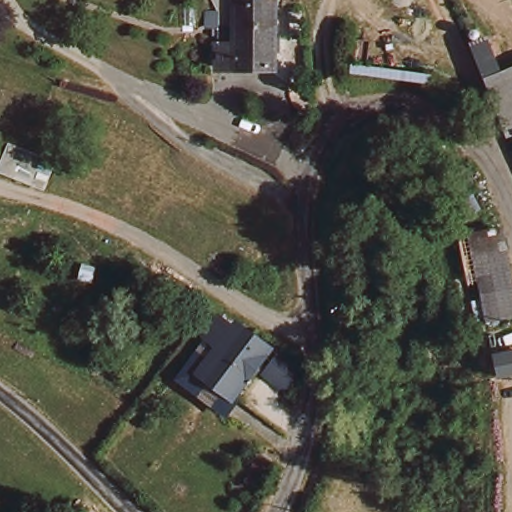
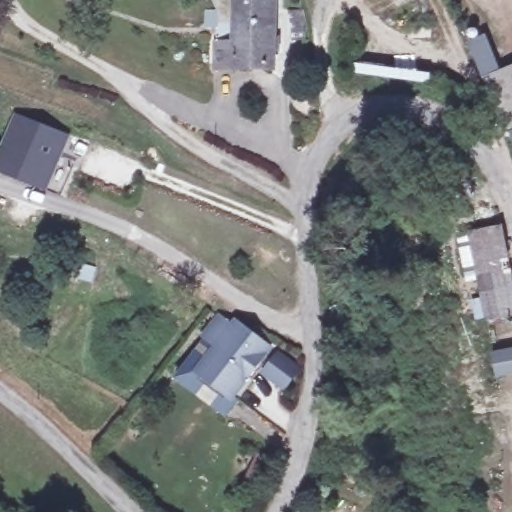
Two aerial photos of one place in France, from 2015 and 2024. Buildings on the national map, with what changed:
unchanged [(243,81),(244,68),(227,68),(227,38),(229,20),(245,20),(245,0),(279,0),(277,70),(264,69),(264,82),(243,81)]
unchanged [(480,75),(512,61),(512,129),(510,130),(480,75)]
new [(49,192),(0,173),(0,138),(5,127),(7,128),(14,114),(70,135),(64,151),(80,157),(65,198),(49,192)]
unchanged [(512,129),(512,135),(510,130),(512,129)]
unchanged [(481,239),(508,236),(512,275),(484,276),(481,239)]
unchanged [(512,275),(512,280),(512,324),(487,326),(484,276),(512,275)]
unchanged [(225,316),(238,325),(240,321),(272,344),(241,389),(248,394),(239,407),(199,380),(187,372),(212,335),(225,316)]
unchanged [(512,348),(512,373),(496,376),(493,351),(512,348)]
unchanged [(301,362),(289,380),(271,368),(284,350),(301,362)]

